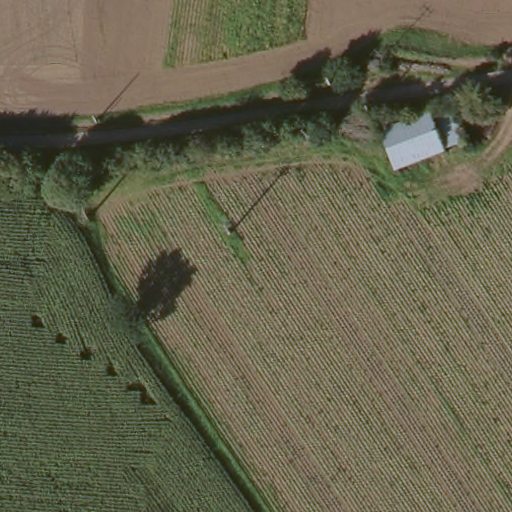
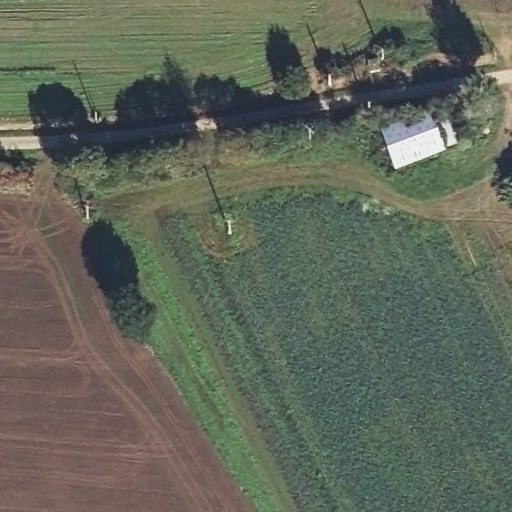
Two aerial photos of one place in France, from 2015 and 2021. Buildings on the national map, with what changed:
unchanged [(379,71),(376,54),(384,53),(388,70),(379,71)]
unchanged [(461,144),(394,177),(373,142),(439,108),(461,144)]

